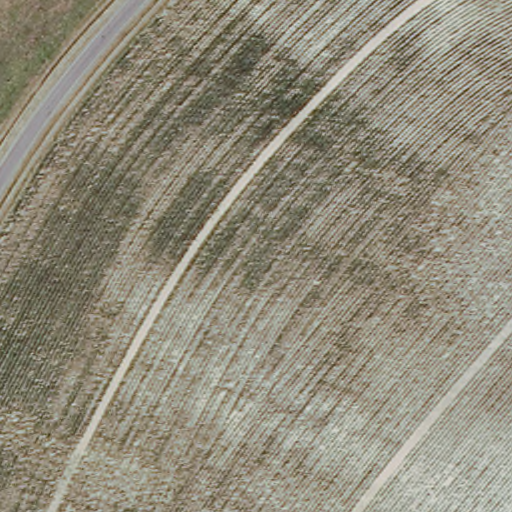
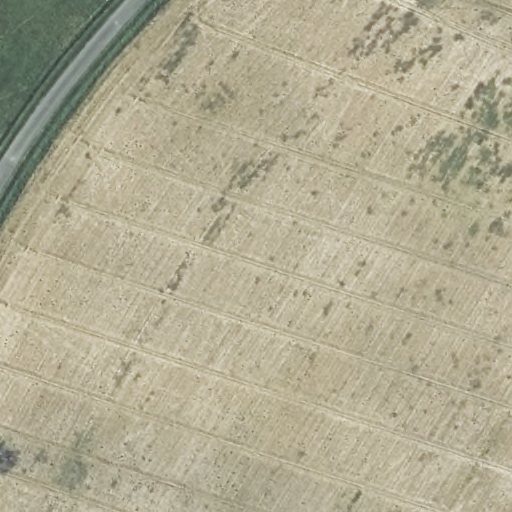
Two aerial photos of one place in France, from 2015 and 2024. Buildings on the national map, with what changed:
[]

